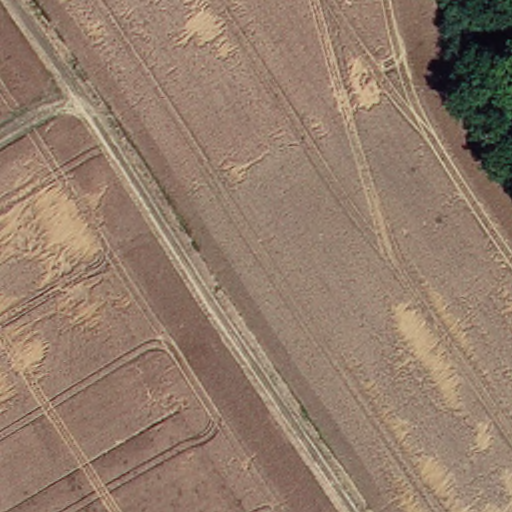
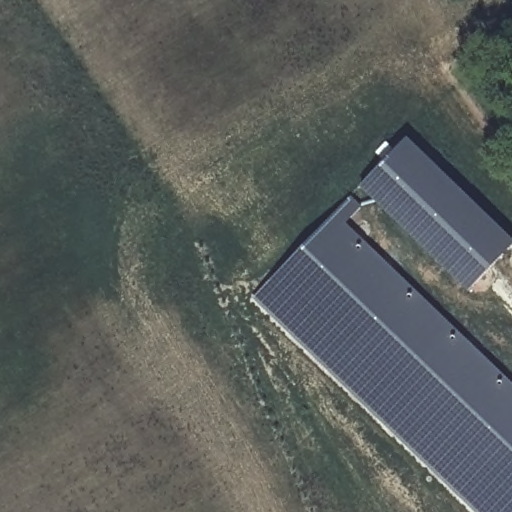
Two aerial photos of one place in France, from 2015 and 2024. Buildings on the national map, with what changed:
new [(403,134),(512,238),(464,287),(357,182),(403,134)]
new [(332,208),(512,382),(512,512),(477,512),(249,292),(332,208)]

